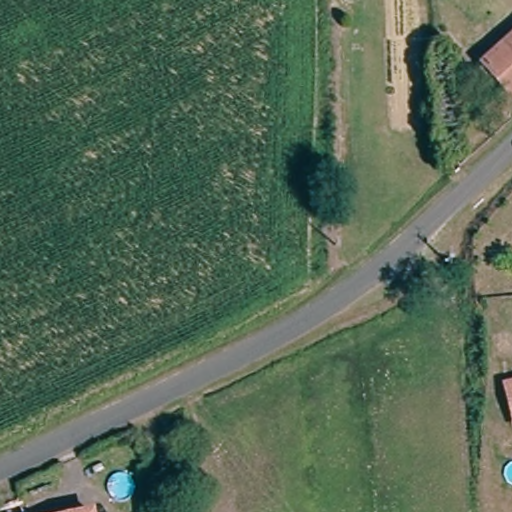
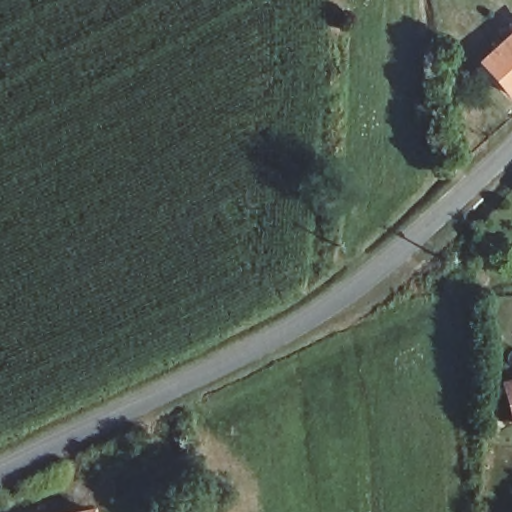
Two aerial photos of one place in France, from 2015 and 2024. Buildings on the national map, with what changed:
unchanged [(512,1),(510,0),(512,0),(512,1)]
unchanged [(512,51),(512,109),(483,74),(512,51)]
unchanged [(512,422),(503,382),(512,380),(512,422)]

